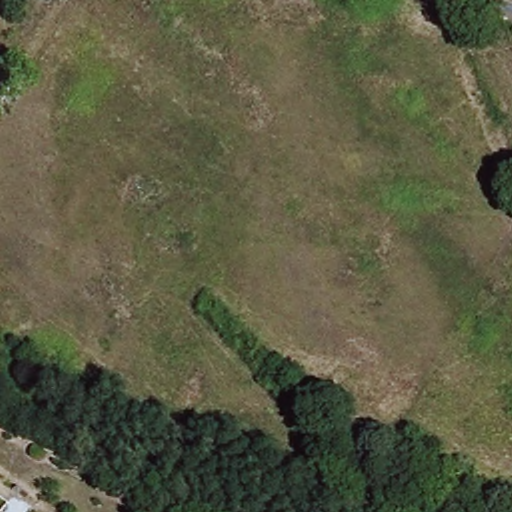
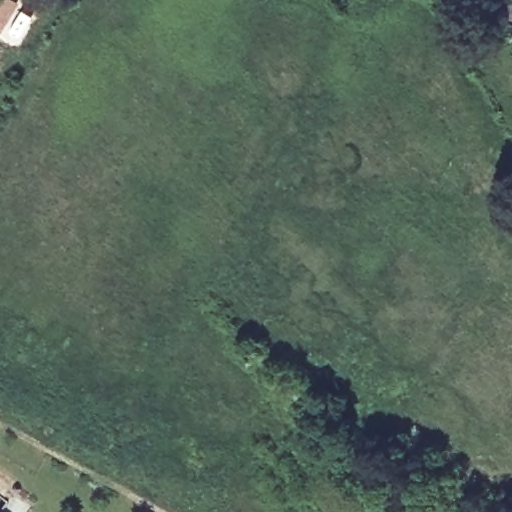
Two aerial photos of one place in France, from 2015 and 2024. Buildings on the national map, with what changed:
new [(0,0),(20,0),(0,31),(0,0)]

